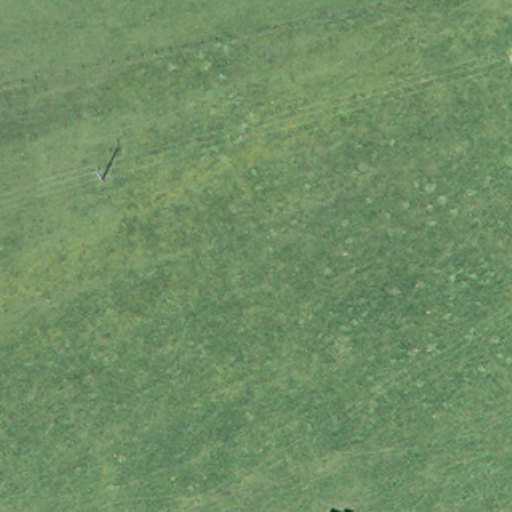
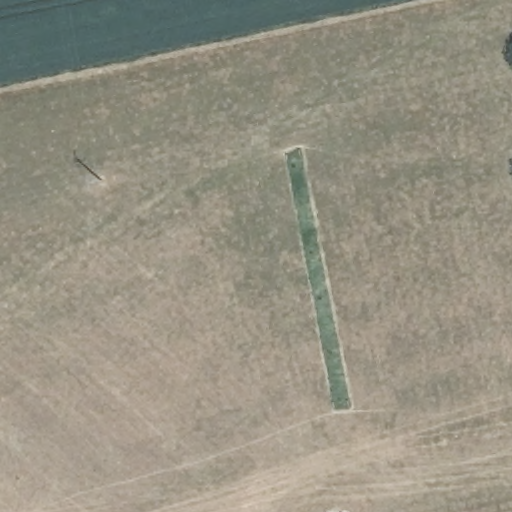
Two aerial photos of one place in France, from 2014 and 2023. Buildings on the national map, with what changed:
unchanged [(335,508),(339,502),(346,506),(344,512),(320,512),(324,503),(335,508)]

